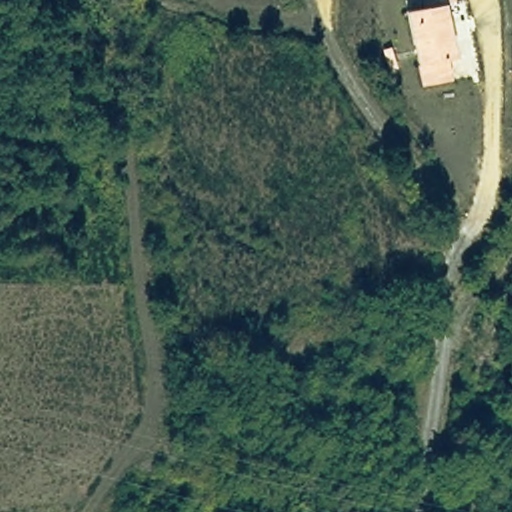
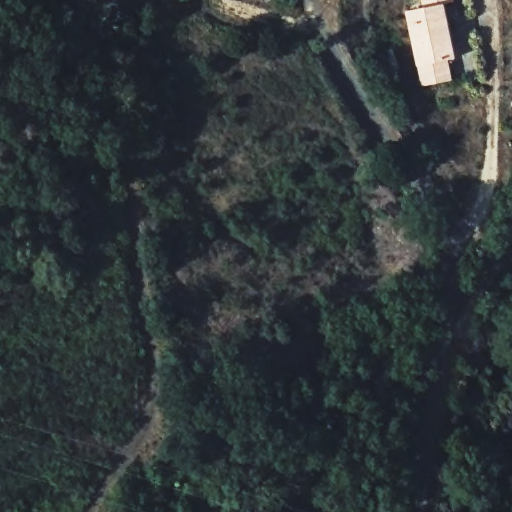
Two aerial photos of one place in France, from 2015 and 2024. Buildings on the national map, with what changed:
unchanged [(455,2),(445,4),(456,57),(449,59),(452,79),(422,86),(418,64),(407,10),(422,7),(421,0),(454,0),(455,2)]

